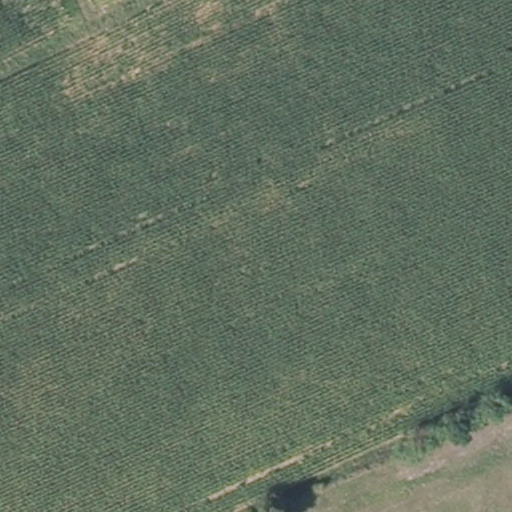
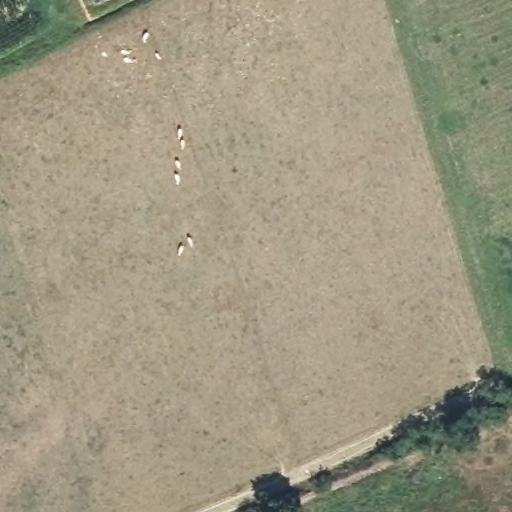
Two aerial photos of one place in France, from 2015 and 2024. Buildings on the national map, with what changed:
[]

